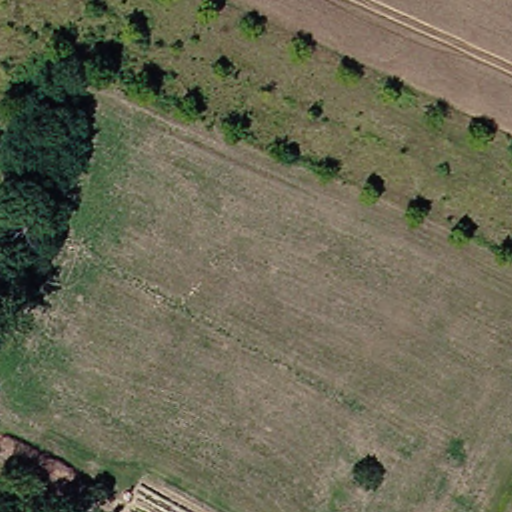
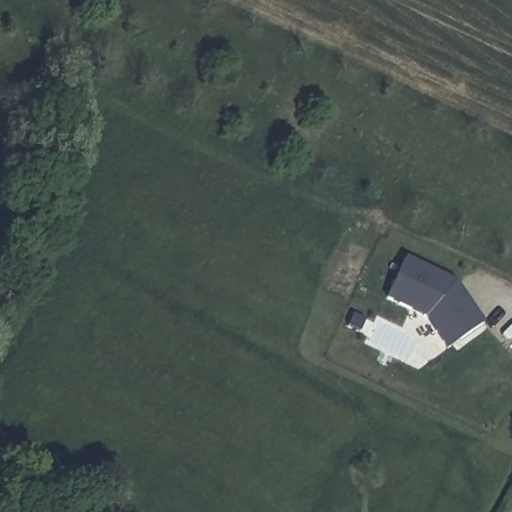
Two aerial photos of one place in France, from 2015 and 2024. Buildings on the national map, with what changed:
new [(432,329),(422,315),(382,297),(399,259),(450,281),(478,320),(456,336),(443,345),(432,329)]

